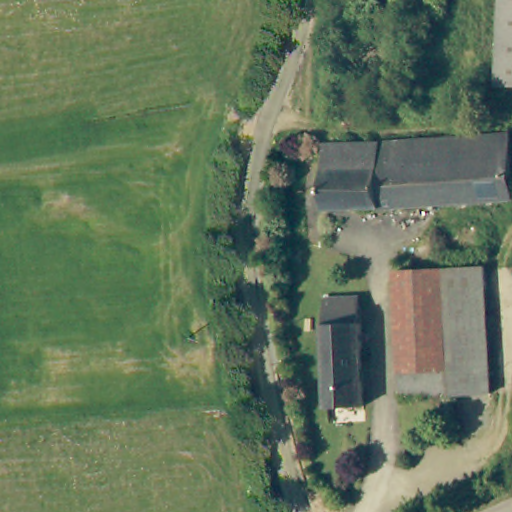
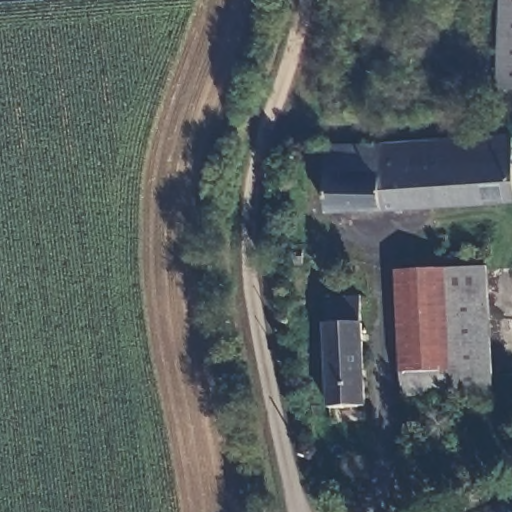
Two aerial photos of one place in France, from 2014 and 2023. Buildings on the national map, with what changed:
unchanged [(512,84),(500,84),(500,0),(512,0),(512,84)]
unchanged [(323,169),(327,143),(509,132),(512,176),(512,199),(326,207),(323,169)]
unchanged [(283,262),(283,245),(301,245),(301,262),(283,262)]
unchanged [(486,295),(397,296),(397,268),(485,267),(486,295)]
unchanged [(327,404),(322,295),(357,295),(362,404),(327,404)]
unchanged [(488,391),(397,392),(397,296),(486,295),(488,391)]

